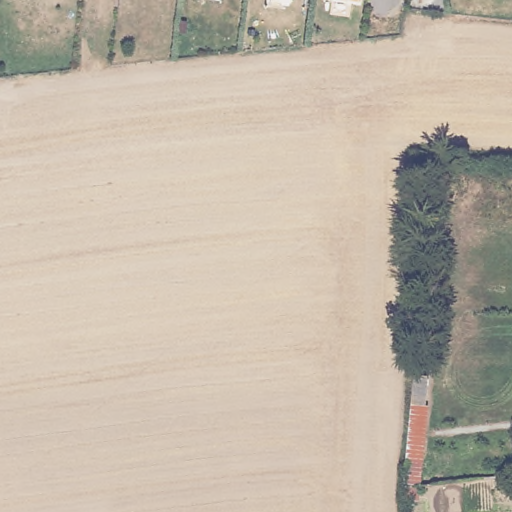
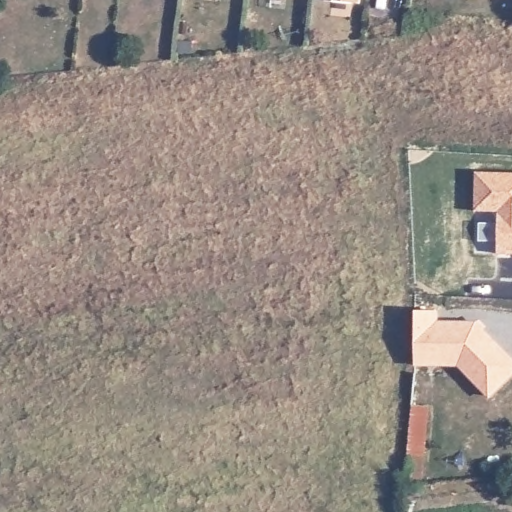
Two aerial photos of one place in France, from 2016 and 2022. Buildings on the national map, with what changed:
unchanged [(359,2),(342,0),(360,0),(359,2)]
new [(475,170),(512,171),(512,251),(498,251),(499,209),(474,210),(475,170)]
new [(414,308),(439,308),(439,318),(478,319),(480,316),(488,324),(485,327),(512,354),(512,375),(488,397),(457,365),(414,365),(414,308)]
unchanged [(433,376),(429,405),(421,488),(403,485),(412,402),(414,373),(433,376)]

